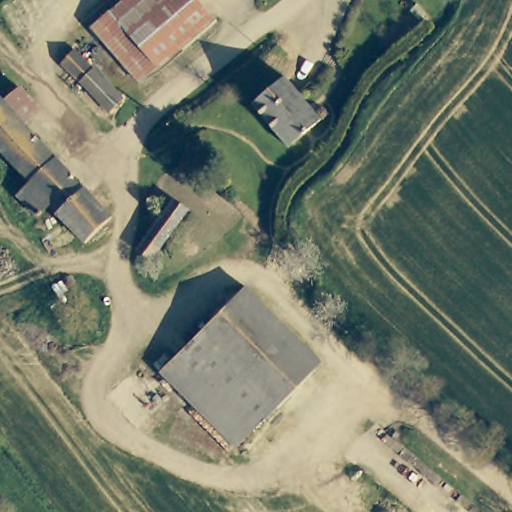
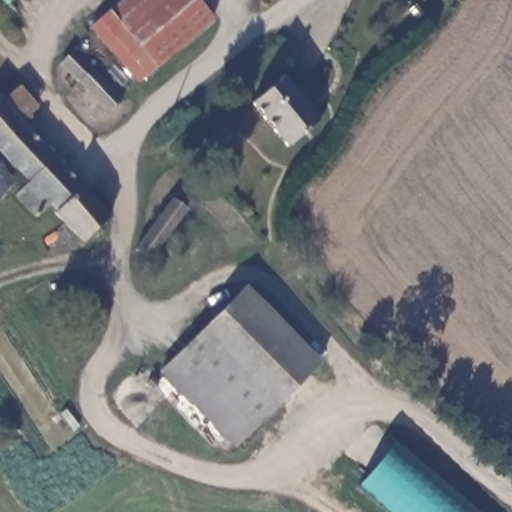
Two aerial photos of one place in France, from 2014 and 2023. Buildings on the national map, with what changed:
unchanged [(191,0),(207,16),(153,65),(109,17),(128,0),(191,0)]
unchanged [(90,34),(109,17),(153,65),(156,69),(139,86),(90,34)]
unchanged [(121,100),(109,112),(57,60),(71,48),(121,100)]
unchanged [(316,121),(314,124),(285,152),(246,111),(271,87),(277,82),(316,121)]
unchanged [(33,110),(19,125),(105,218),(80,244),(46,207),(36,217),(16,194),(25,184),(0,157),(0,105),(3,108),(17,94),(33,110)]
unchanged [(135,249),(173,199),(187,208),(148,260),(135,249)]
unchanged [(243,294),(314,368),(279,403),(224,344),(235,334),(218,318),(241,296),(243,294)]
unchanged [(235,334),(224,344),(279,403),(236,444),(164,367),(218,318),(235,334)]
new [(393,439),(484,512),(393,512),(358,484),(393,439)]

